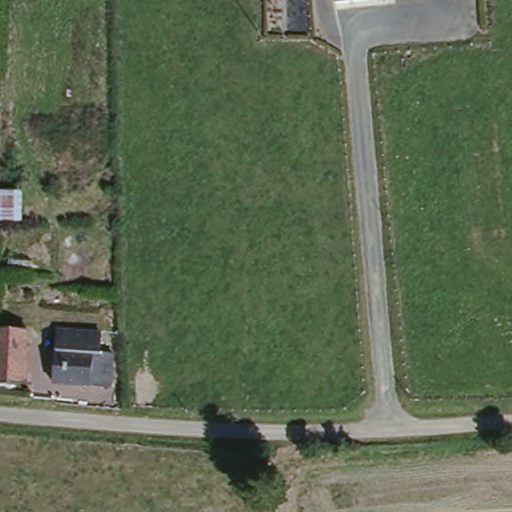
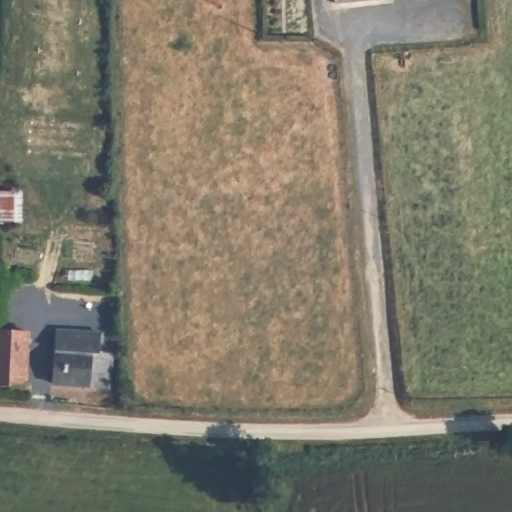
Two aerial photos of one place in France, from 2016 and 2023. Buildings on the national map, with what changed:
unchanged [(336,0),(374,0),(337,6),(336,0)]
unchanged [(26,222),(0,222),(0,186),(25,184),(26,222)]
unchanged [(97,354),(110,355),(106,386),(53,382),(57,332),(58,326),(97,327),(97,333),(97,354)]
unchanged [(31,332),(27,385),(0,385),(0,330),(23,331),(31,332)]

